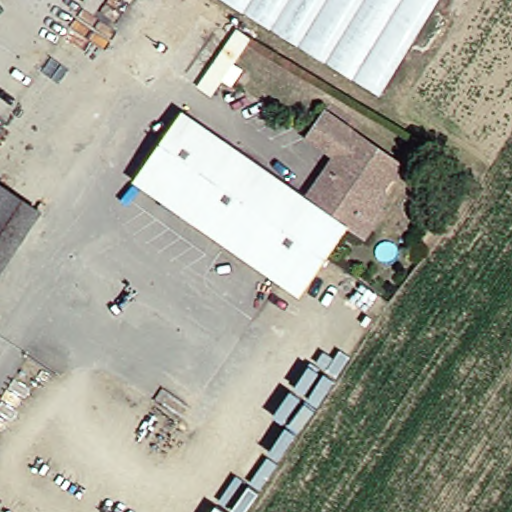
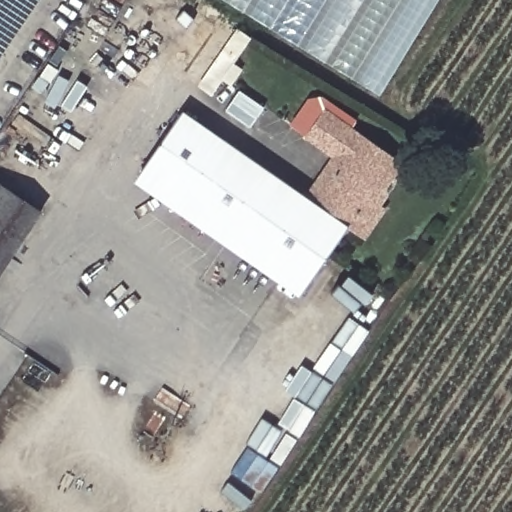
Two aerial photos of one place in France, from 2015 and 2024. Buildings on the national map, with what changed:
new [(0,0),(38,0),(0,57),(0,0)]
unchanged [(219,0),(431,0),(373,94),(219,0)]
unchanged [(220,97),(208,90),(244,31),(255,38),(220,97)]
unchanged [(324,157),(296,137),(314,111),(391,165),(363,204),(358,201),(341,226),(339,229),(337,227),(306,206),(296,199),(324,157)]
unchanged [(293,290),(129,175),(172,112),(214,141),(296,199),(306,206),(337,227),(293,290)]
unchanged [(0,260),(0,190),(32,212),(0,260)]

